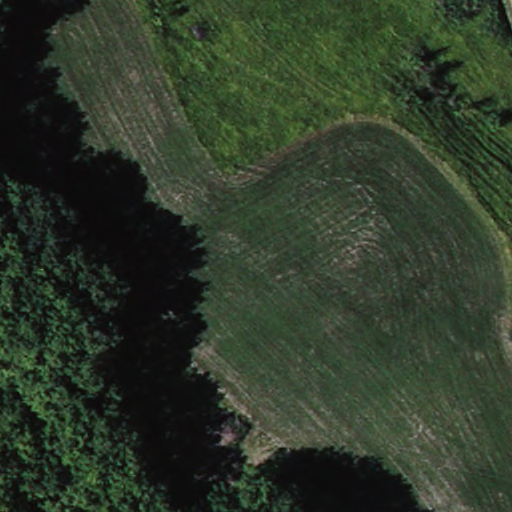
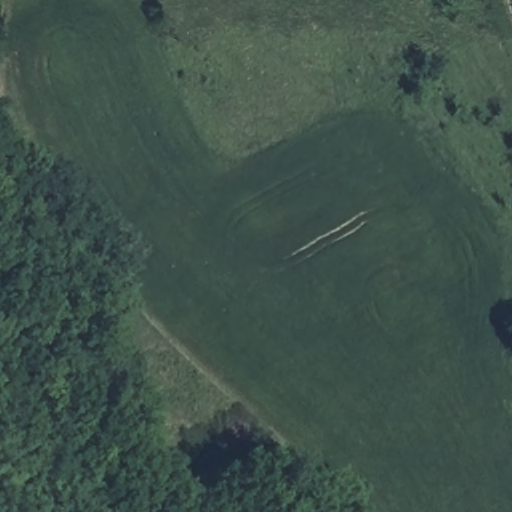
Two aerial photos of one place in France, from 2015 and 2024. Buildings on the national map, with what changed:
[]

